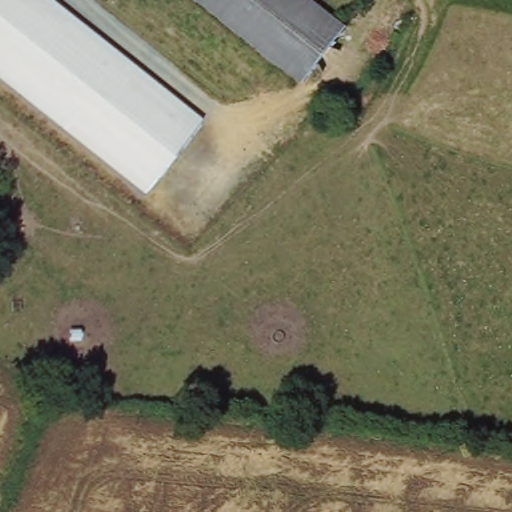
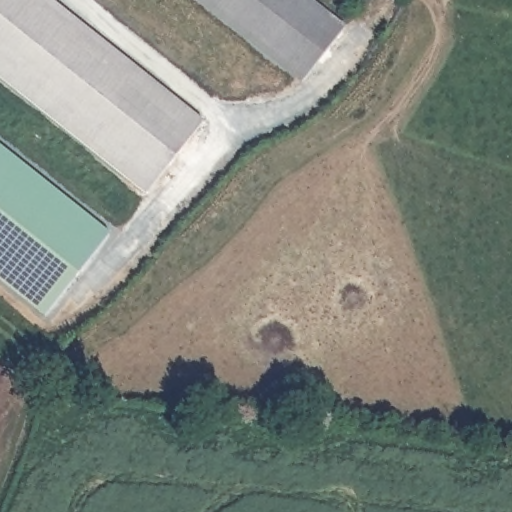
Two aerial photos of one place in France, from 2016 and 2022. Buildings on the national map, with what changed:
unchanged [(146,196),(0,80),(0,0),(54,0),(204,120),(146,196)]
unchanged [(308,78),(209,0),(309,0),(345,29),(308,78)]
new [(0,279),(0,146),(107,232),(44,314),(0,279)]

